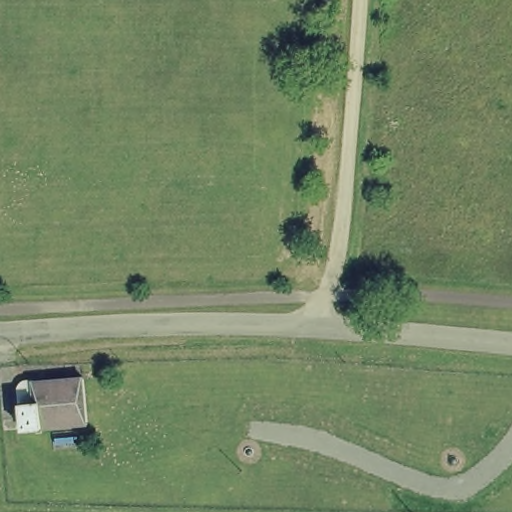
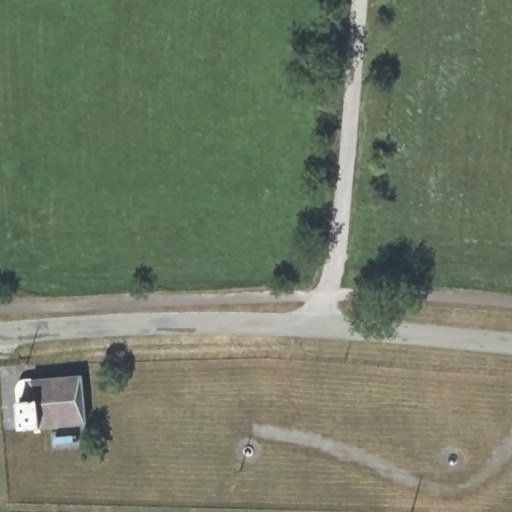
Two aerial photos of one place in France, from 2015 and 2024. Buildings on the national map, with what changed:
unchanged [(88,426),(47,431),(27,432),(24,404),(34,403),(32,381),(86,377),(88,426)]

